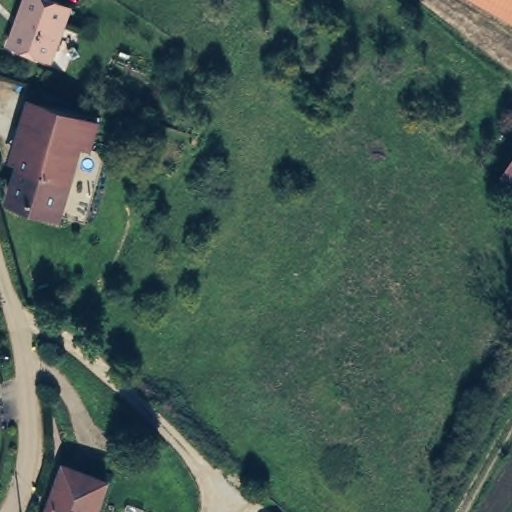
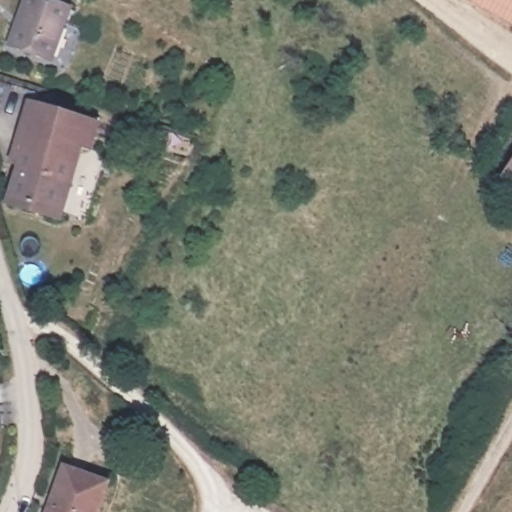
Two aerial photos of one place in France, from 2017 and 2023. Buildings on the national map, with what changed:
unchanged [(48,58),(7,43),(14,22),(22,0),(55,0),(67,5),(48,58)]
unchanged [(512,23),(471,0),(512,0),(512,23)]
unchanged [(97,121),(88,149),(80,146),(58,217),(38,210),(35,217),(25,214),(27,207),(8,200),(37,102),(97,121)]
unchanged [(498,177),(512,157),(512,188),(512,187),(498,177)]
unchanged [(95,512),(41,512),(70,464),(110,487),(95,512)]

